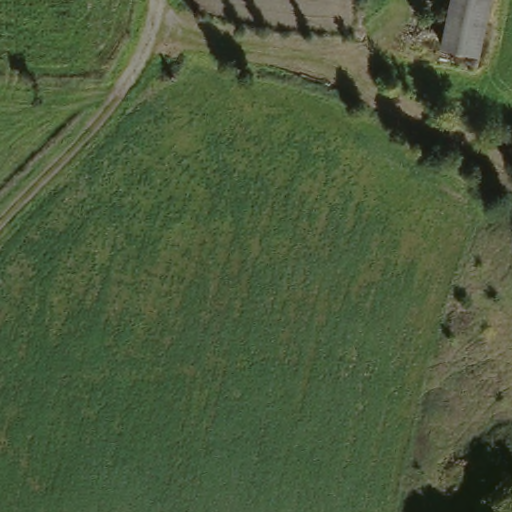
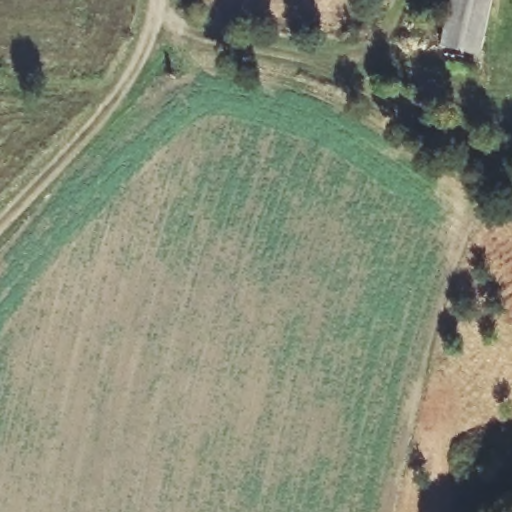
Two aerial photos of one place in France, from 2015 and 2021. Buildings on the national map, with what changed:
unchanged [(447,46),(456,0),(496,0),(486,53),(447,46)]

